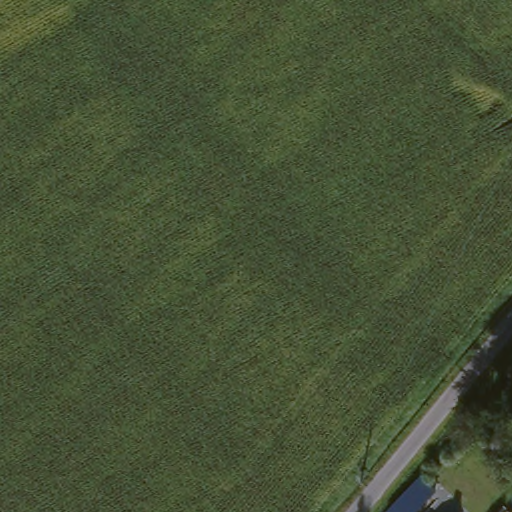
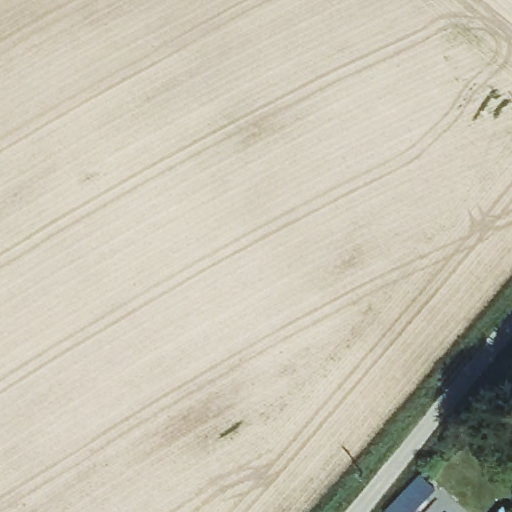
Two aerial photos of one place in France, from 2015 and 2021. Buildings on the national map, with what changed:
unchanged [(429,482),(404,512),(388,512),(420,472),(429,482)]
unchanged [(504,504),(512,510),(512,512),(498,512),(504,504)]

